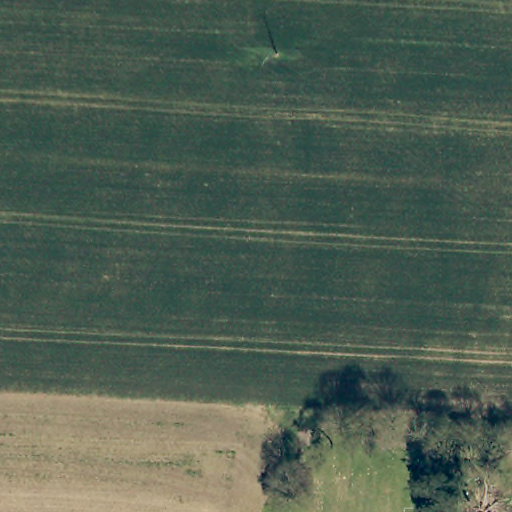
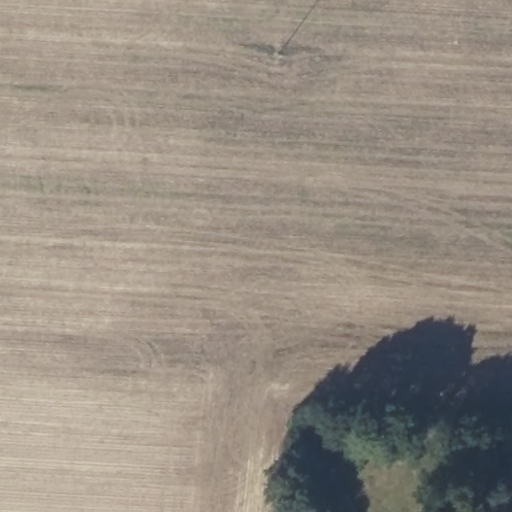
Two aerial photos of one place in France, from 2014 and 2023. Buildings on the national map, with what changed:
[]

